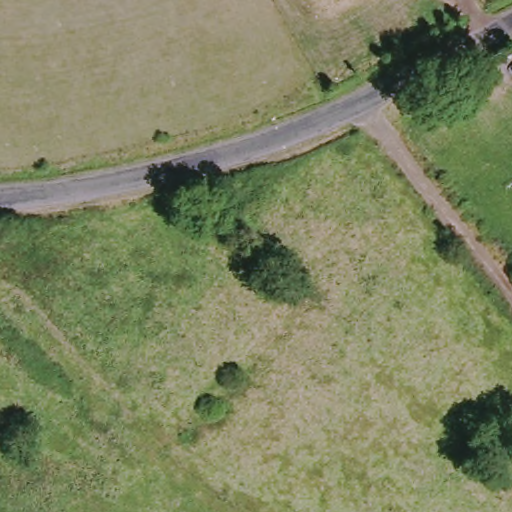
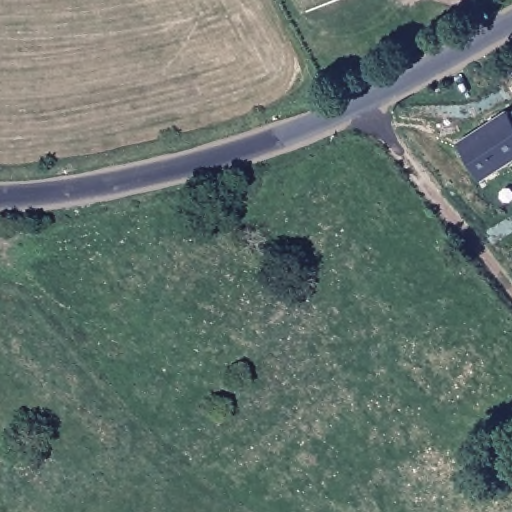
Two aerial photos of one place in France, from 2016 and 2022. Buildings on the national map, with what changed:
new [(457,143),(509,111),(510,113),(512,111),(512,163),(497,177),(482,179),(457,143)]

